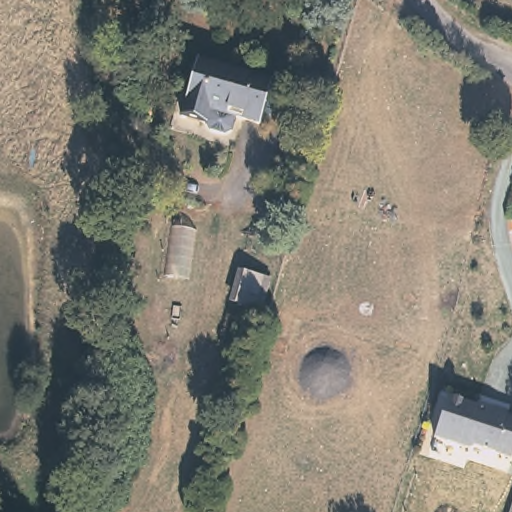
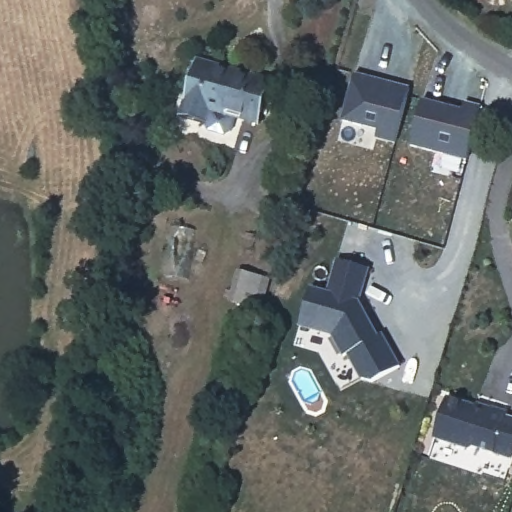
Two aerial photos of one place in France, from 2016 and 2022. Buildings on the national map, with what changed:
unchanged [(270,80),(258,124),(205,112),(203,124),(182,120),(196,62),(270,80)]
new [(355,75),(411,89),(395,155),(375,150),(377,142),(341,134),(355,75)]
new [(427,97),(468,107),(470,99),(486,103),(473,157),(416,143),(427,97)]
new [(311,286),(328,291),(337,260),(369,269),(360,302),(379,335),(382,332),(400,366),(372,381),(360,378),(348,354),(343,356),(332,335),(300,327),(311,286)]
unchanged [(247,275),(247,271),(271,277),(264,313),(256,311),(230,306),(237,273),(247,275)]
unchanged [(486,409),(491,406),(506,411),(505,415),(512,416),(512,455),(511,457),(475,446),(470,448),(434,437),(446,397),(486,409)]

